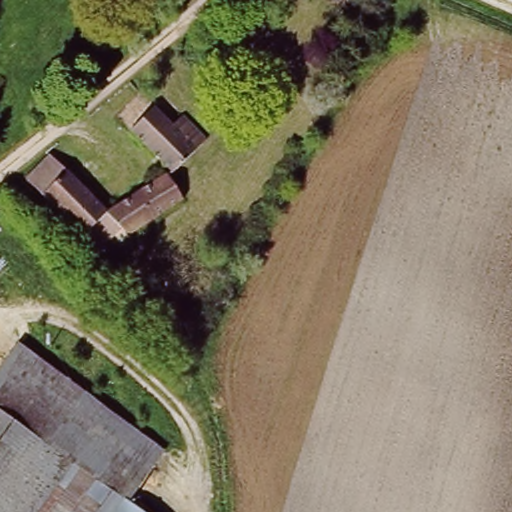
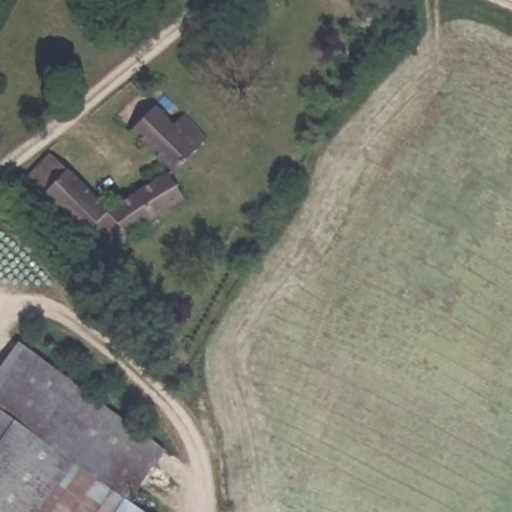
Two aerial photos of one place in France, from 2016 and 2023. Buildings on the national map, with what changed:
unchanged [(104,207),(160,165),(124,130),(152,102),(170,122),(180,113),(205,138),(167,174),(181,200),(125,239),(115,226),(99,246),(82,232),(36,193),(62,163),(104,207)]
unchanged [(132,499),(151,512),(0,512),(0,367),(21,338),(170,449),(132,499)]

